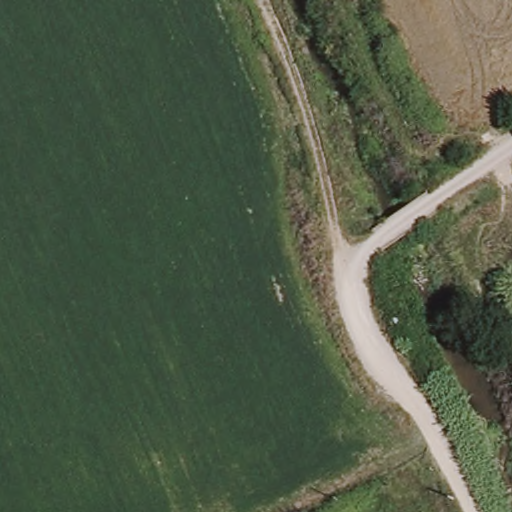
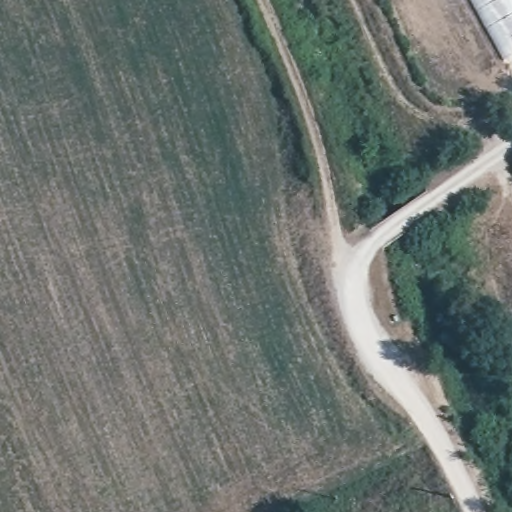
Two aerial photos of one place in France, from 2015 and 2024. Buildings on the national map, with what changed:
new [(504,64),(469,0),(512,0),(512,60),(504,64)]

